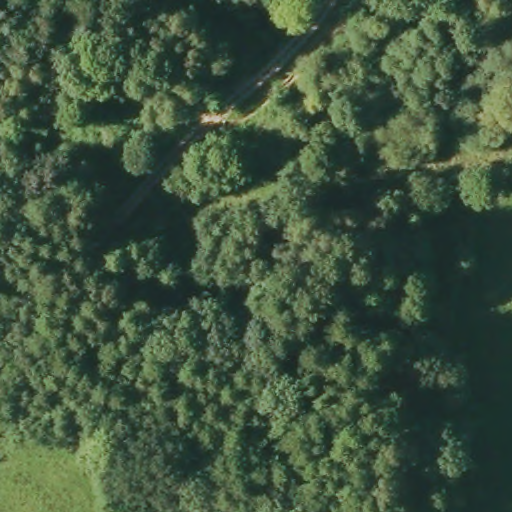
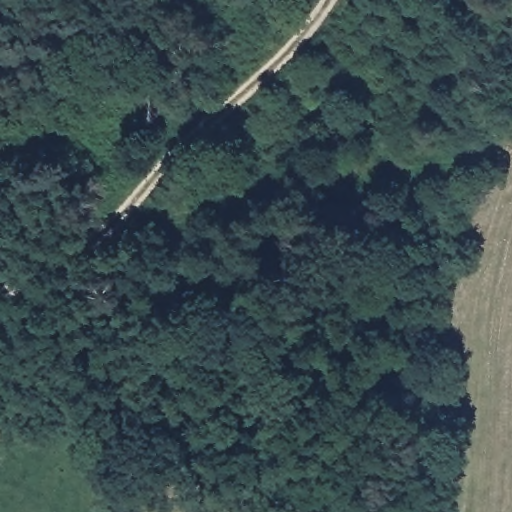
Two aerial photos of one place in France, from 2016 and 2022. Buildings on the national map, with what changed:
[]

